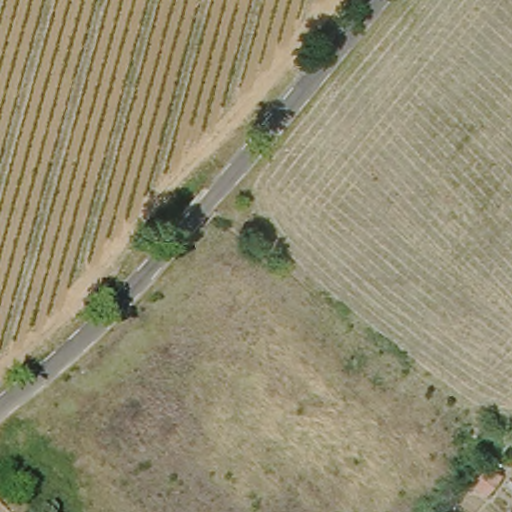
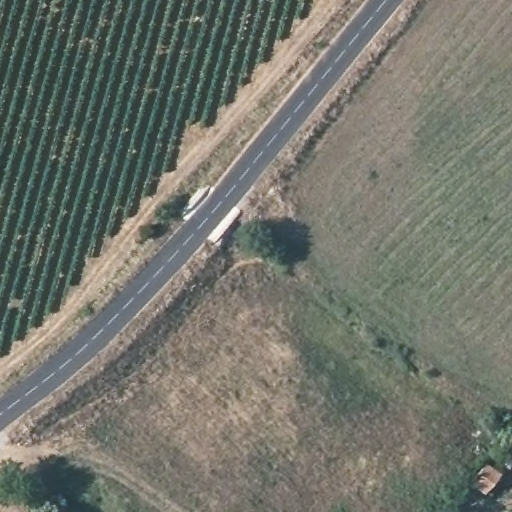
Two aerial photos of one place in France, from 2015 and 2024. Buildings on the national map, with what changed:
unchanged [(507,472),(481,494),(468,482),(489,460),(507,472)]

